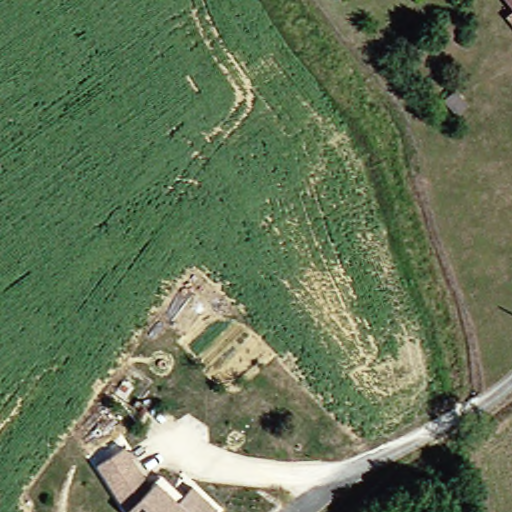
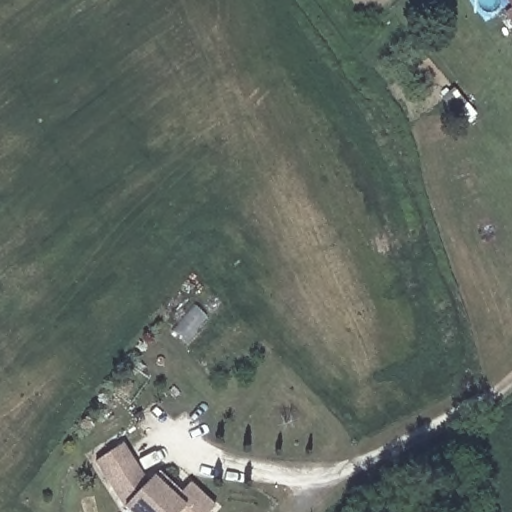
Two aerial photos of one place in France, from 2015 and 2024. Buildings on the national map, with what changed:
unchanged [(121,504),(96,453),(126,439),(147,481),(153,477),(160,472),(180,496),(191,488),(210,512),(127,512),(121,504)]

